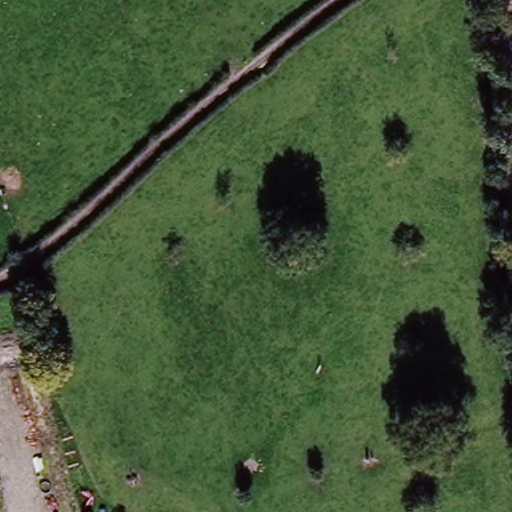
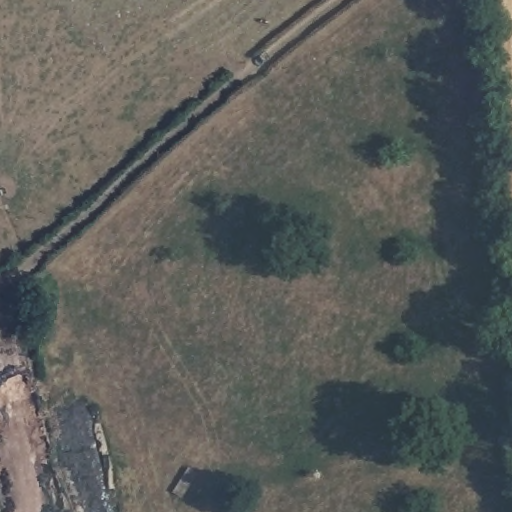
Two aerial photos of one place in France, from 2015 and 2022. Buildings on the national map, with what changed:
[]

